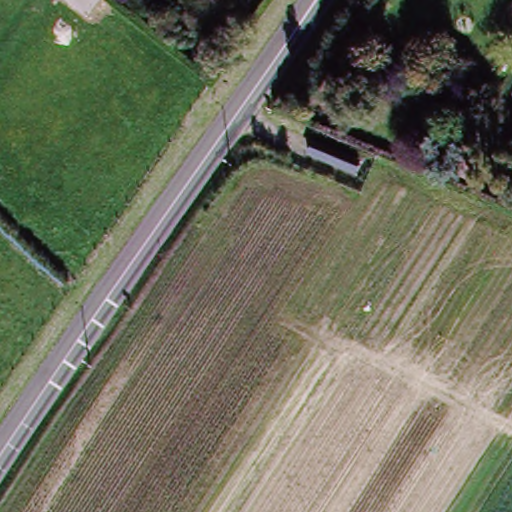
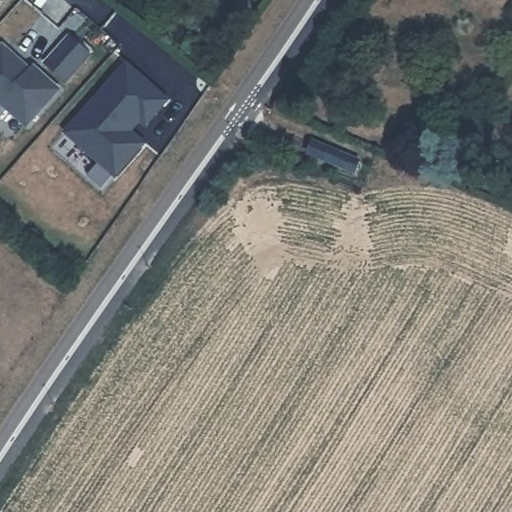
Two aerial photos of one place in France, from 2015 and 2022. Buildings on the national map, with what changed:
new [(61,48),(82,66),(65,85),(45,67),(61,48)]
new [(34,72),(40,77),(58,93),(26,129),(0,106),(0,53),(2,51),(30,76),(34,72)]
new [(125,69),(166,104),(145,128),(140,124),(130,136),(144,147),(115,180),(66,137),(125,69)]

